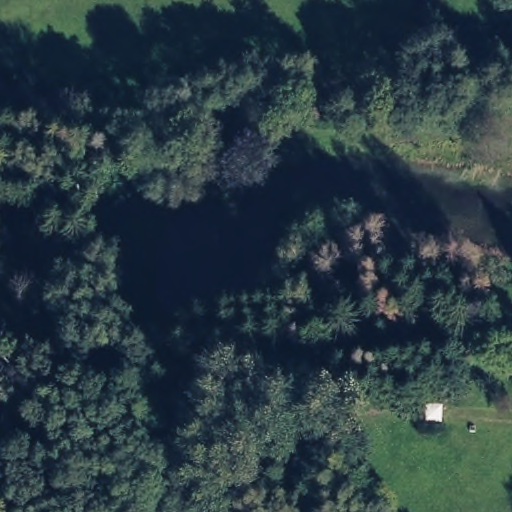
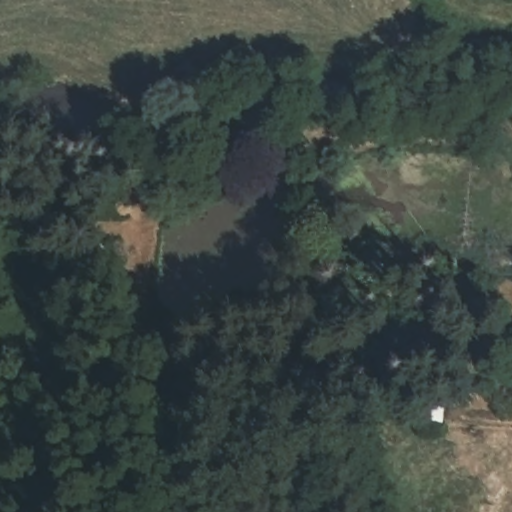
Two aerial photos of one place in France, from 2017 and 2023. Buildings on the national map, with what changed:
[]

